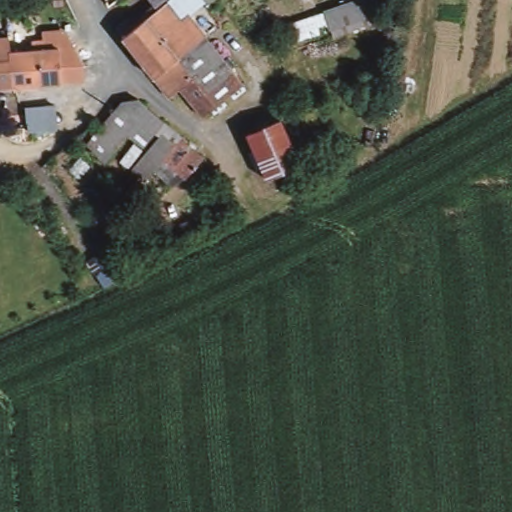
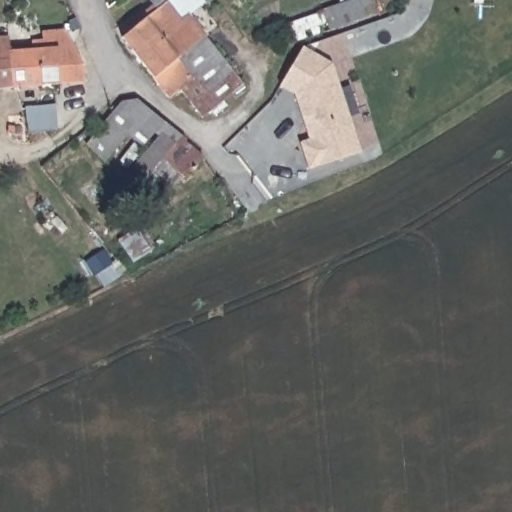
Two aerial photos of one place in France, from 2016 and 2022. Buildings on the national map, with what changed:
unchanged [(202,1),(186,15),(241,84),(200,117),(179,90),(167,97),(120,38),(155,8),(167,0),(201,0),(202,1)]
unchanged [(155,8),(148,0),(167,0),(155,8)]
unchanged [(356,0),(372,0),(377,23),(333,40),(329,33),(293,47),(287,26),(323,11),(356,0)]
unchanged [(84,83),(59,85),(11,88),(0,89),(0,39),(5,38),(7,51),(57,49),(58,55),(83,53),(84,83)]
new [(304,141),(291,95),(276,86),(299,48),(328,66),(355,155),(303,171),(298,155),(295,144),(301,142),(304,141)]
unchanged [(137,142),(122,132),(100,158),(81,142),(116,95),(132,95),(159,116),(137,142)]
unchanged [(30,128),(29,120),(56,118),(57,126),(57,139),(41,139),(36,139),(31,139),(30,128)]
unchanged [(247,135),(280,122),(298,163),(266,177),(247,135)]
unchanged [(157,131),(175,145),(180,141),(197,153),(180,174),(159,159),(144,179),(128,167),(157,131)]

